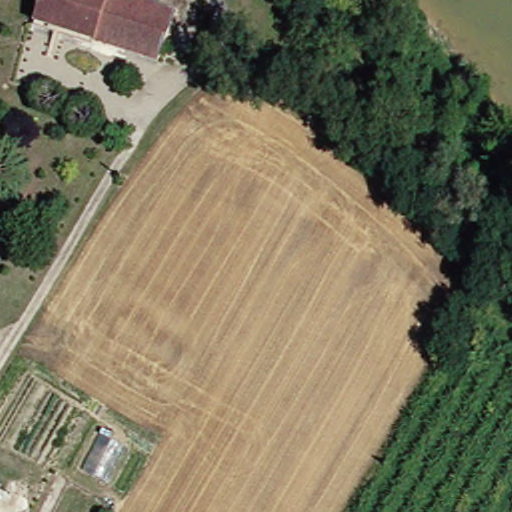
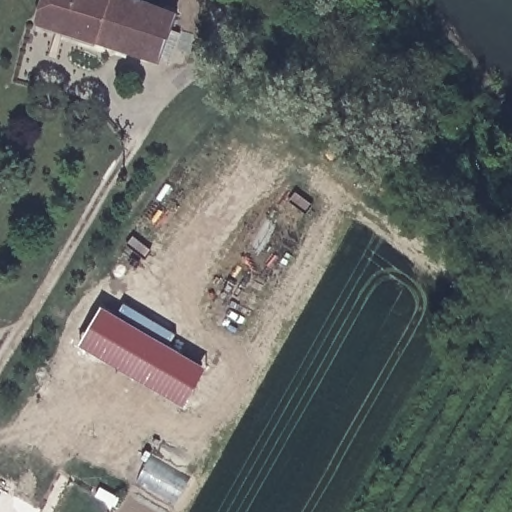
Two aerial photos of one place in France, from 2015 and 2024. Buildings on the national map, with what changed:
unchanged [(150,64),(28,23),(36,0),(114,0),(165,18),(150,64)]
new [(185,406),(80,345),(103,306),(206,367),(185,406)]

